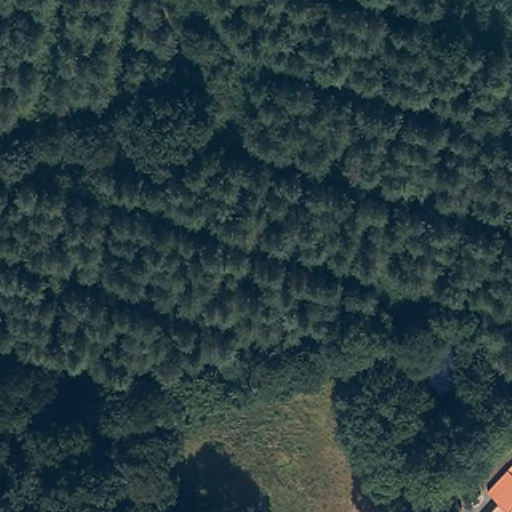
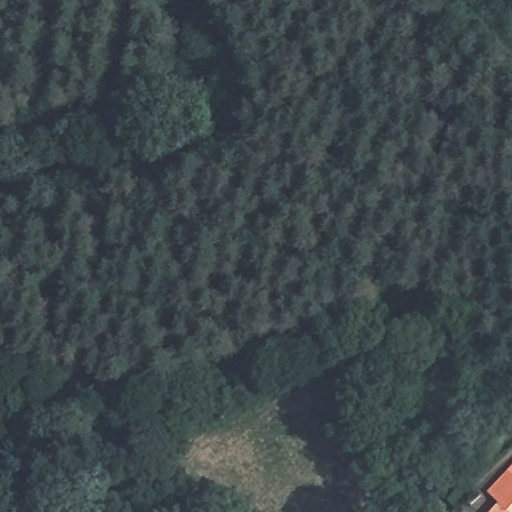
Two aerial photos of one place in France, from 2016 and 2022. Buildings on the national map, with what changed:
unchanged [(502,505),(486,488),(512,463),(512,512),(495,512),(502,505)]

